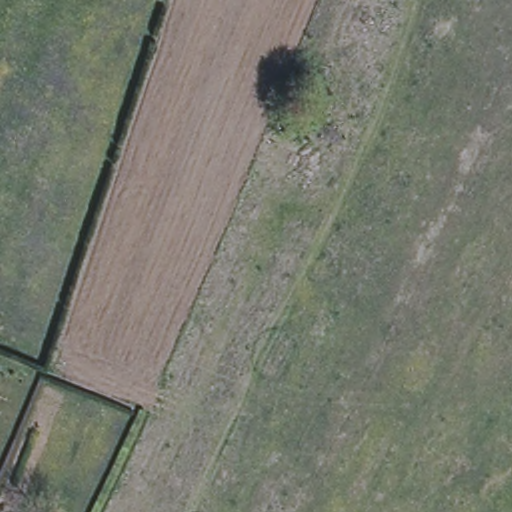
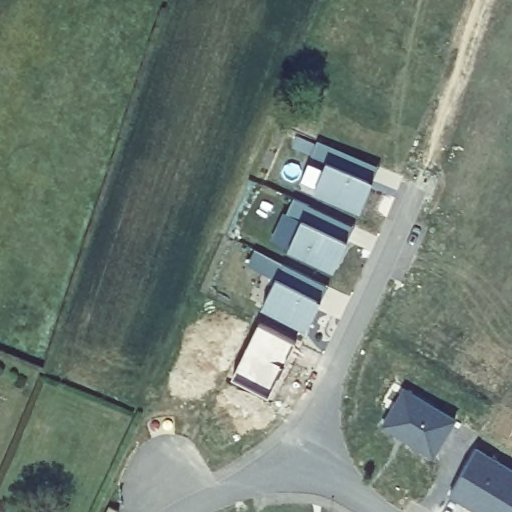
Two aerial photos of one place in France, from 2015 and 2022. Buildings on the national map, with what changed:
new [(379,165),(373,180),(361,211),(314,191),(328,161),(312,155),(318,141),(379,165)]
new [(309,205),(354,226),(348,241),(335,269),(289,248),(301,220),(286,213),(293,198),(309,205)]
new [(283,263),(329,286),(321,300),(308,328),(263,305),(276,278),(283,263)]
new [(293,347),(268,400),(232,382),(257,328),(293,347)]
new [(404,389),(455,418),(434,454),(383,425),(404,389)]
new [(475,450),(512,471),(512,512),(484,512),(451,493),(475,450)]

